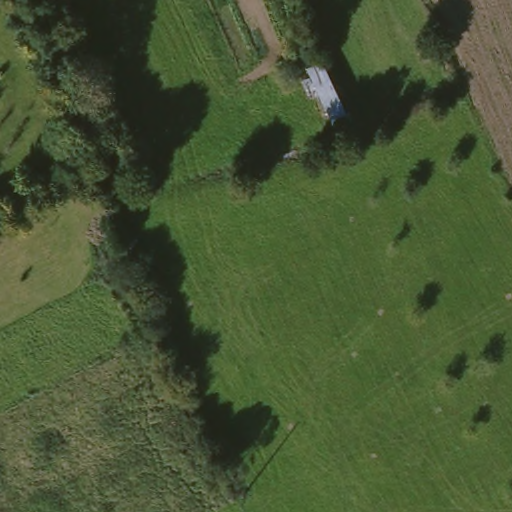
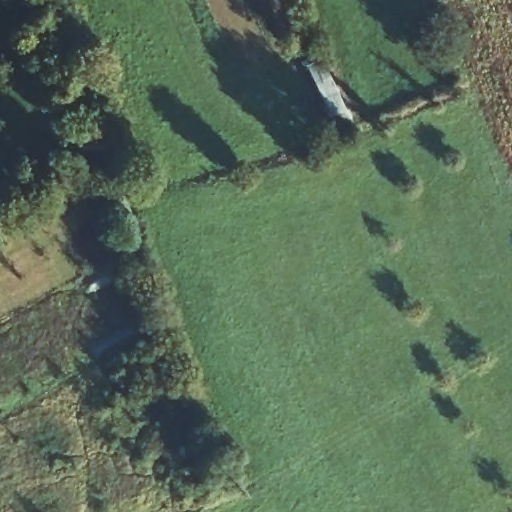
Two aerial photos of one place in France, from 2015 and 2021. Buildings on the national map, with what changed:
unchanged [(362,133),(345,141),(323,93),(315,95),(305,68),(332,56),(362,133)]

